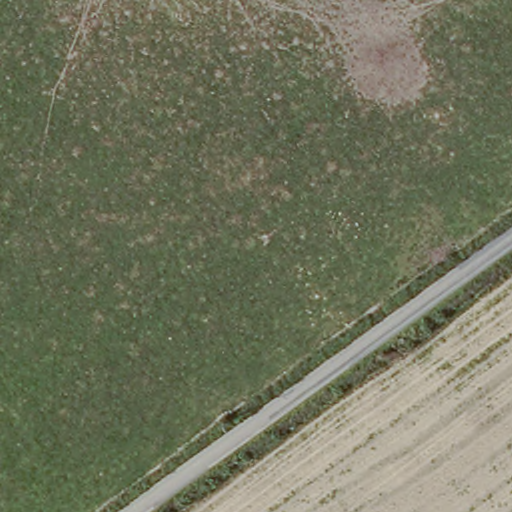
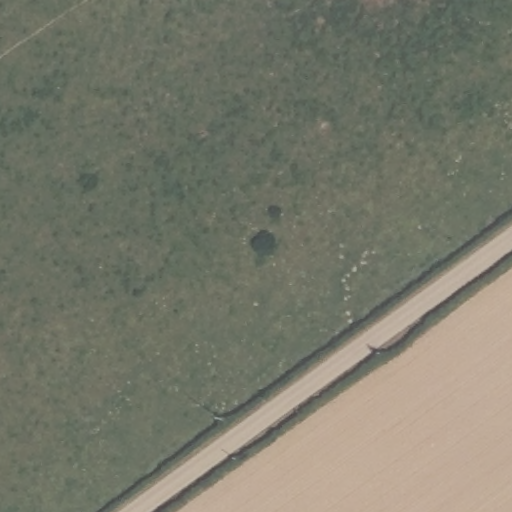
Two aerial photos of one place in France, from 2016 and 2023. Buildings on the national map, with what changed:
[]

